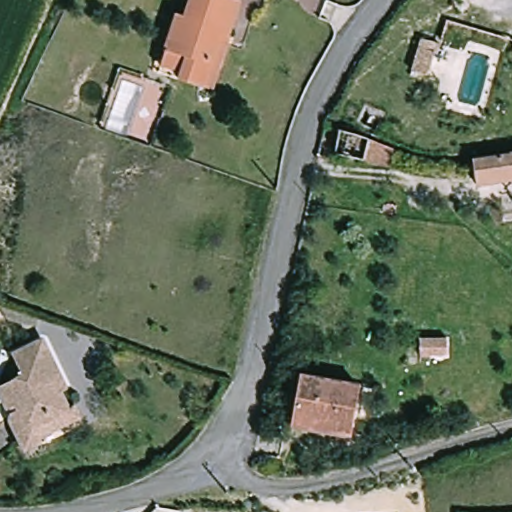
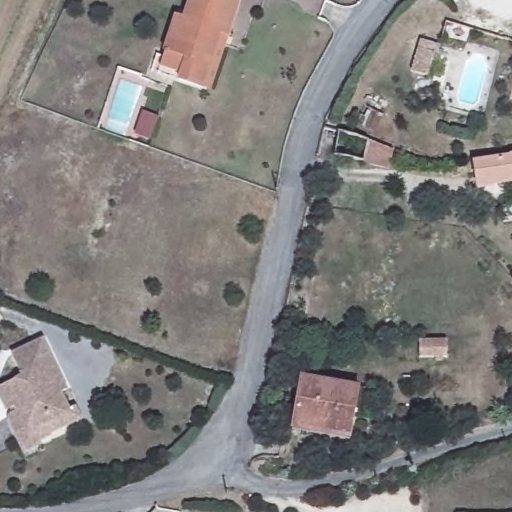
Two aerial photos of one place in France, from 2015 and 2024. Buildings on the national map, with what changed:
unchanged [(204,86),(179,78),(182,69),(161,63),(177,13),(185,16),(190,0),(240,0),(229,35),(212,89),(204,86)]
unchanged [(428,77),(412,72),(421,39),(441,45),(438,55),(435,54),(428,77)]
unchanged [(340,129),(363,137),(387,147),(393,150),(390,167),(334,154),(340,129)]
unchanged [(476,186),(472,160),(512,155),(512,182),(476,186)]
unchanged [(53,444),(57,450),(41,460),(21,426),(27,423),(18,408),(10,413),(0,397),(0,387),(16,377),(4,355),(40,334),(69,383),(66,385),(77,403),(81,401),(87,411),(93,420),(53,444)]
unchanged [(447,356),(420,357),(420,339),(447,339),(447,356)]
unchanged [(292,421),(300,377),(359,387),(373,390),(368,419),(354,416),(351,432),(292,421)]

